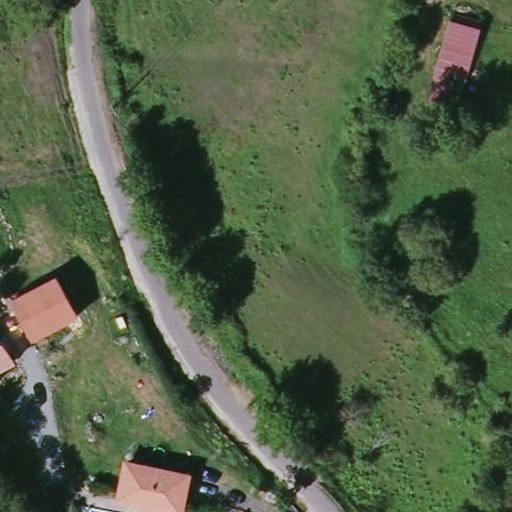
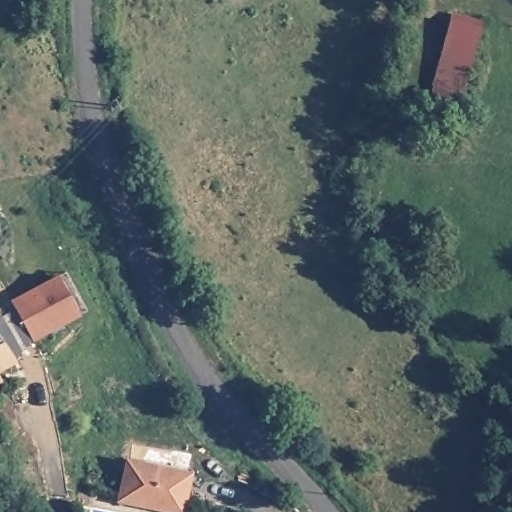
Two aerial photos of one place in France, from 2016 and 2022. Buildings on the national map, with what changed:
unchanged [(477,29),(465,98),(425,91),(437,23),(477,29)]
unchanged [(79,318),(31,343),(9,302),(56,276),(79,318)]
unchanged [(0,366),(0,336),(2,340),(11,361),(0,366)]
unchanged [(181,477),(174,512),(163,512),(115,501),(120,466),(181,477)]

